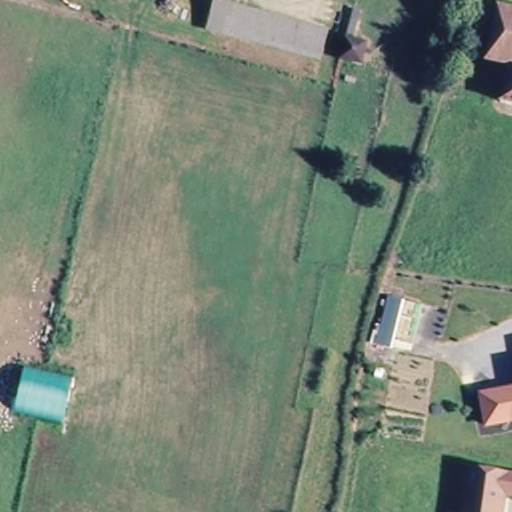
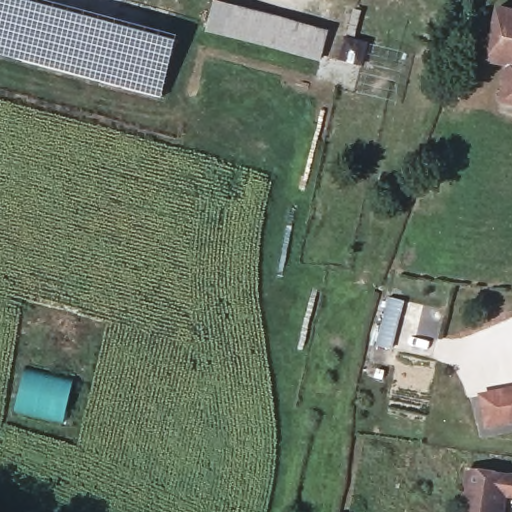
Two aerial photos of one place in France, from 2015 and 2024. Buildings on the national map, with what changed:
new [(162,98),(0,54),(0,0),(44,0),(179,36),(162,98)]
unchanged [(205,30),(210,1),(330,32),(323,67),(205,30)]
unchanged [(512,11),(512,105),(497,102),(505,66),(483,58),(495,6),(512,11)]
unchanged [(22,367),(75,374),(68,422),(16,413),(22,367)]
unchanged [(479,394),(505,389),(512,387),(512,424),(485,429),(479,394)]
unchanged [(512,474),(512,500),(509,512),(462,512),(470,467),(512,474)]

